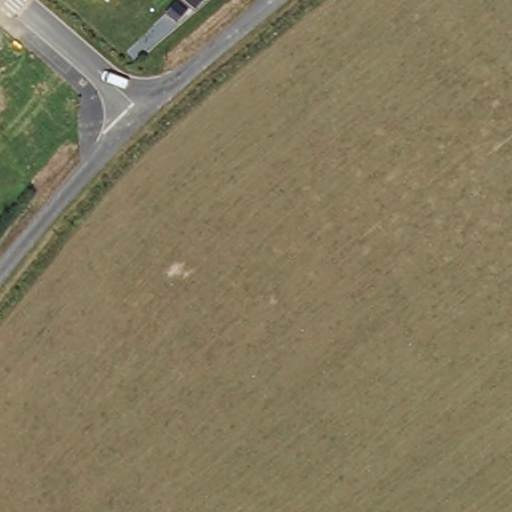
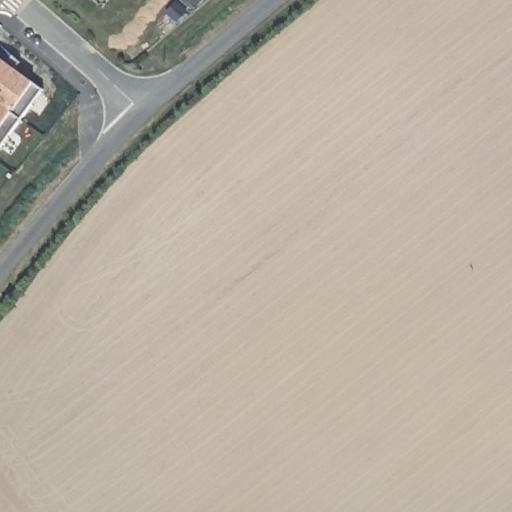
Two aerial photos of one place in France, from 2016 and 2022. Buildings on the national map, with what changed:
new [(7,58),(13,50),(21,56),(15,64),(44,84),(0,144),(0,52),(7,58)]

